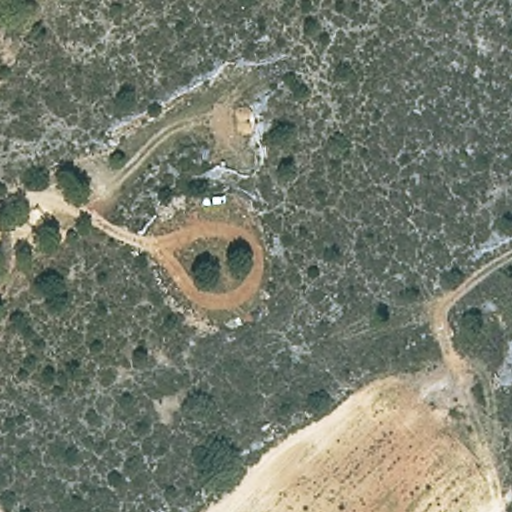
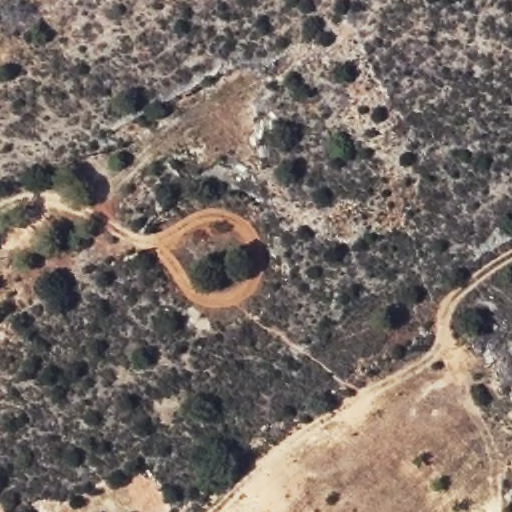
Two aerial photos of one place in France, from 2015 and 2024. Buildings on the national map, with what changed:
[]

